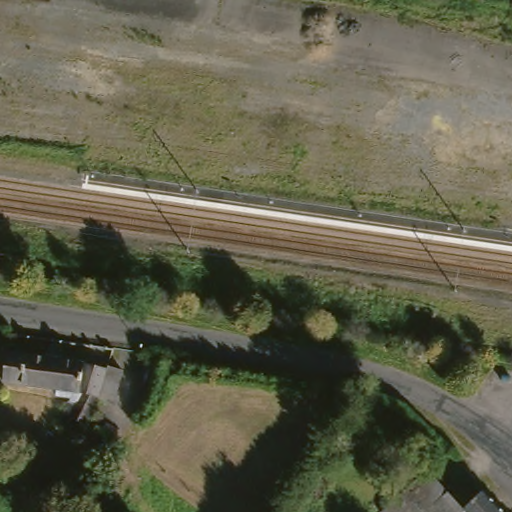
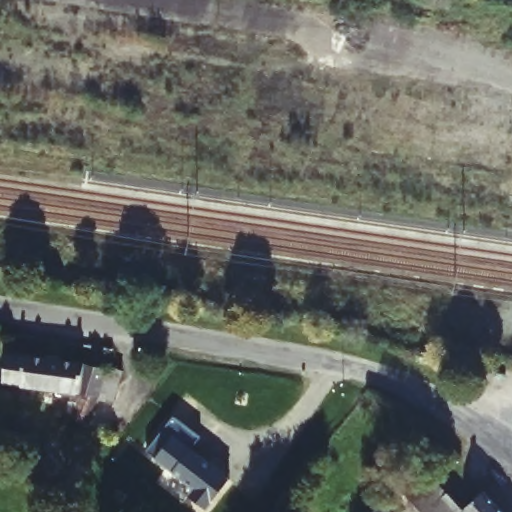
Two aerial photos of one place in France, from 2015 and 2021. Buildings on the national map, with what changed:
unchanged [(113,395),(97,416),(84,410),(94,393),(16,381),(21,352),(117,367),(113,395)]
new [(200,436),(191,450),(228,478),(204,509),(187,496),(194,489),(174,473),(146,452),(174,416),(200,436)]
unchanged [(49,424),(63,434),(47,455),(34,445),(49,424)]
unchanged [(421,479),(454,512),(384,512),(421,479)]
unchanged [(479,494),(495,512),(460,512),(479,494)]

